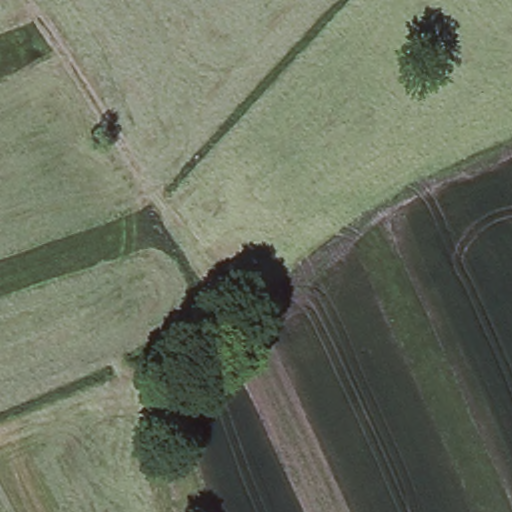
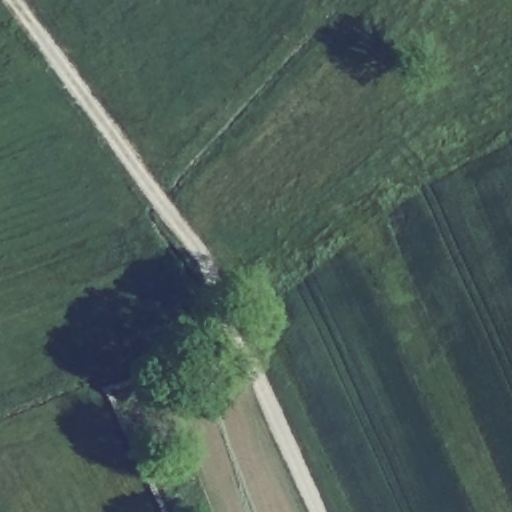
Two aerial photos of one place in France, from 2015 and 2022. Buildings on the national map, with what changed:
[]

